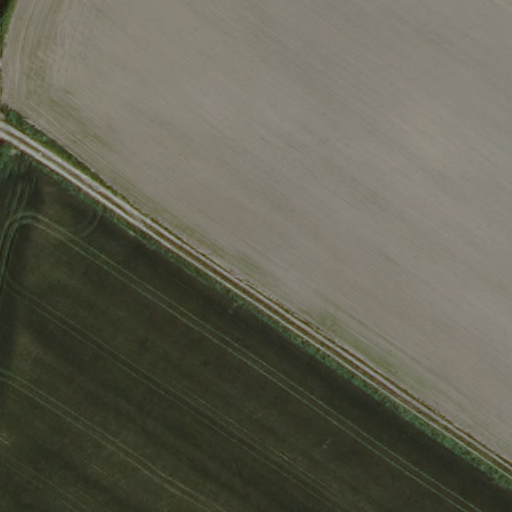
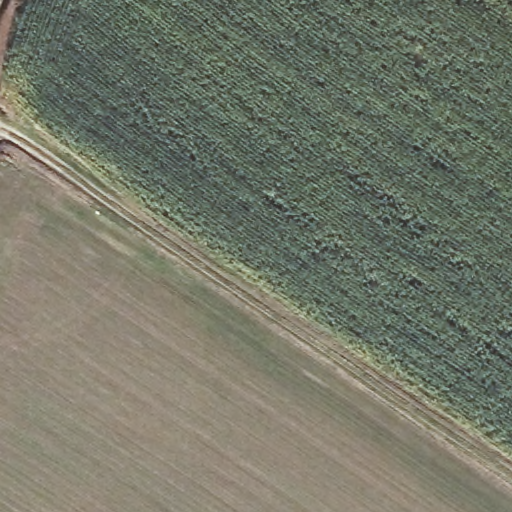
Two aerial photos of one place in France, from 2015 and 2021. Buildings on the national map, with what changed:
[]

